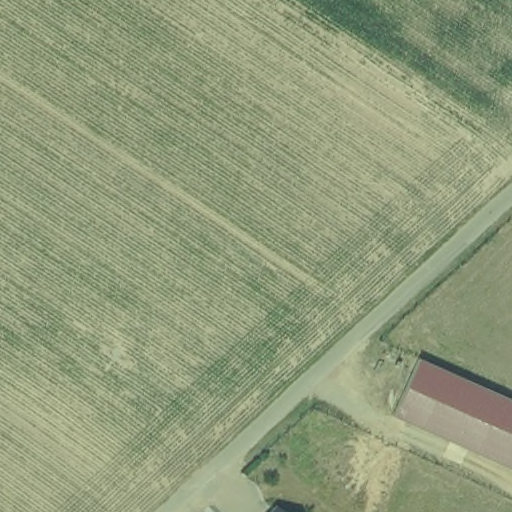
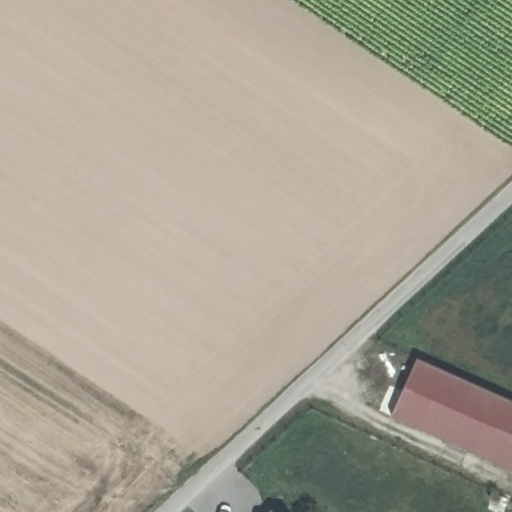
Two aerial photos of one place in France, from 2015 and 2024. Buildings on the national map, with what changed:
unchanged [(512,398),(512,467),(442,436),(390,413),(416,355),(468,378),(512,398)]

